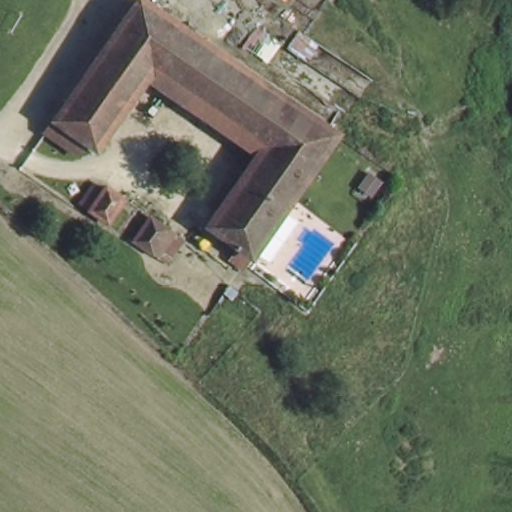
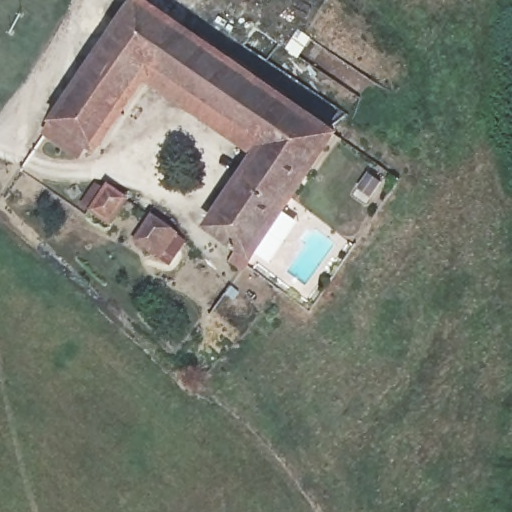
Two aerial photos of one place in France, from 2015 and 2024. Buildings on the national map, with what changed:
unchanged [(215,228),(265,148),(152,70),(98,150),(83,141),(77,151),(56,139),(64,126),(54,121),(136,0),(137,0),(292,105),(334,135),(255,255),(246,268),(235,261),(244,247),(215,228)]
unchanged [(94,187),(107,195),(113,187),(131,200),(116,223),(84,201),(94,187)]
unchanged [(149,226),(170,240),(154,263),(134,249),(149,226)]

